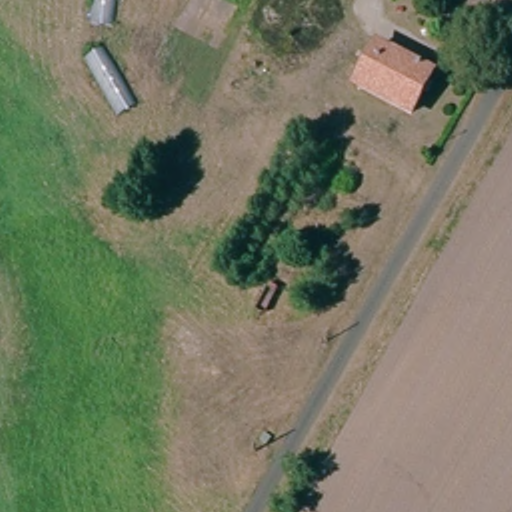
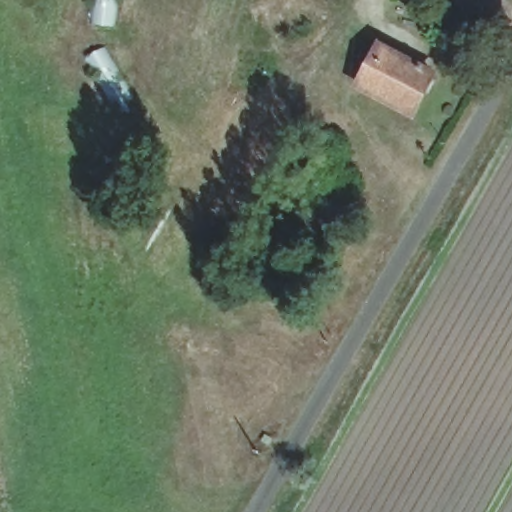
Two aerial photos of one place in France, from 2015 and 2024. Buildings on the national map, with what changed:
unchanged [(412,121),(353,87),(375,46),(433,80),(412,121)]

